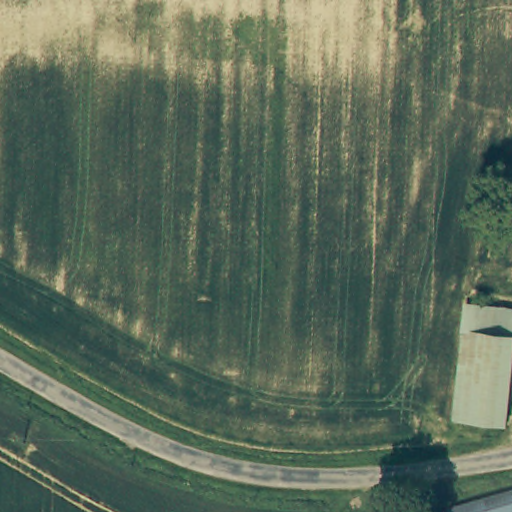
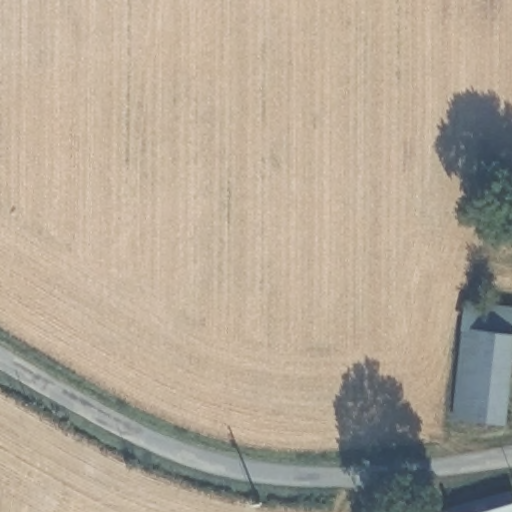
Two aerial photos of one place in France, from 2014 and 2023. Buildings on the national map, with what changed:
unchanged [(466,303),(512,308),(512,333),(464,328),(466,303)]
unchanged [(454,416),(464,328),(512,333),(512,361),(505,421),(454,416)]
unchanged [(447,511),(512,491),(512,512),(448,512),(447,511)]
unchanged [(434,512),(441,510),(445,512),(434,512)]

